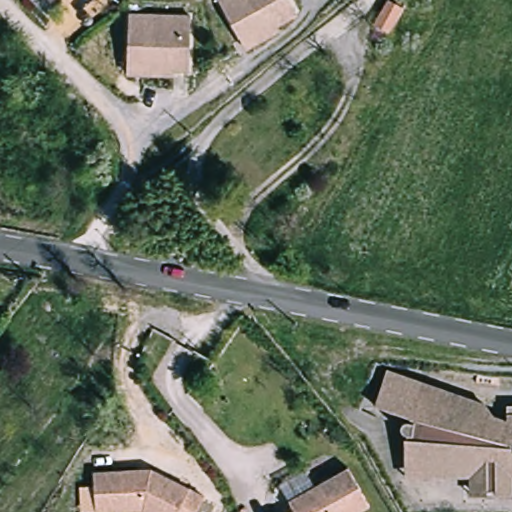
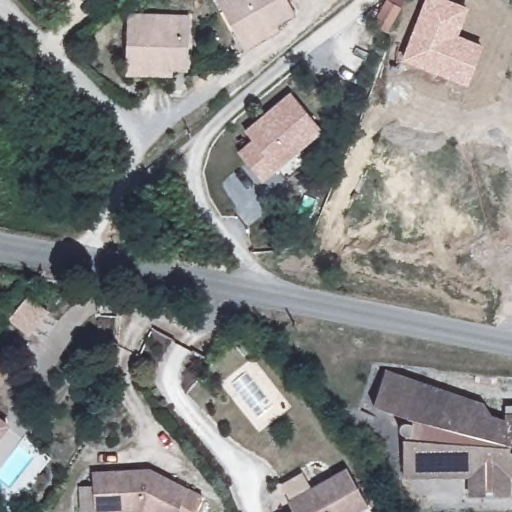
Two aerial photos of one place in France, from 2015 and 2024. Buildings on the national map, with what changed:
unchanged [(240,40),(219,2),(223,0),(285,0),(294,17),(276,27),(281,36),(248,55),(240,40)]
new [(468,86),(402,60),(425,0),(450,0),(469,8),(459,35),(484,45),(468,86)]
unchanged [(386,37),(372,29),(387,4),(402,13),(386,37)]
unchanged [(127,77),(128,61),(132,15),(193,20),(188,74),(163,72),(162,80),(127,77)]
new [(323,131),(262,182),(237,151),(252,140),(244,130),(290,91),(323,131)]
new [(28,297),(50,315),(32,338),(10,320),(28,297)]
unchanged [(422,400),(494,415),(500,421),(504,426),(512,428),(512,478),(511,478),(511,501),(472,500),(468,470),(412,468),(413,438),(403,435),(403,426),(417,426),(417,418),(387,410),(390,396),(392,383),(400,385),(424,390),(422,400)]
new [(11,424),(0,439),(0,415),(11,424)]
unchanged [(354,512),(286,512),(289,510),(284,500),(344,469),(364,507),(354,512)]
unchanged [(94,511),(95,470),(153,472),(204,503),(198,512),(110,512),(94,511)]
unchanged [(302,472),(312,485),(284,500),(279,486),(302,472)]

